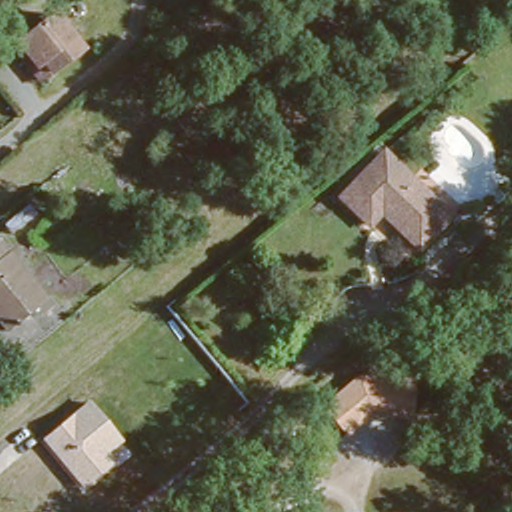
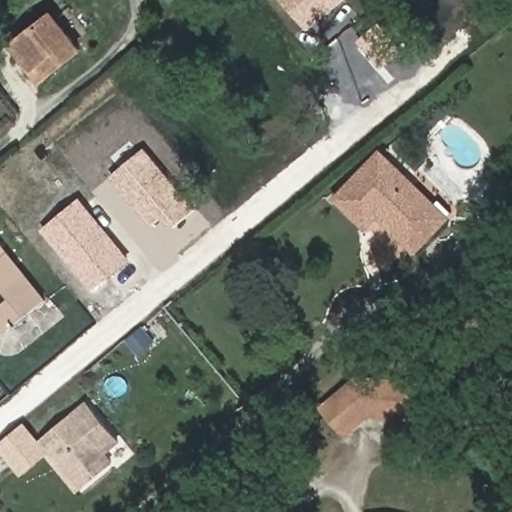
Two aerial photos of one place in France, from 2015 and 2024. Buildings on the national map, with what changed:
new [(284,0),(345,0),(308,31),(284,0)]
unchanged [(12,36),(47,6),(77,41),(37,75),(25,61),(7,40),(12,36)]
new [(399,51),(377,69),(357,41),(381,25),(399,51)]
unchanged [(437,228),(415,251),(382,220),(387,213),(382,208),(365,226),(333,195),(380,149),(438,205),(449,215),(437,228)]
new [(143,150),(195,211),(171,232),(162,220),(151,229),(108,178),(143,150)]
new [(127,260),(89,291),(41,230),(78,199),(127,260)]
unchanged [(0,312),(0,237),(35,282),(47,298),(12,327),(0,312)]
unchanged [(407,418),(366,416),(341,438),(316,406),(350,374),(411,378),(407,418)]
unchanged [(110,453),(117,463),(84,492),(40,439),(89,399),(124,443),(110,453)]
new [(36,442),(40,439),(50,451),(17,478),(0,456),(0,442),(21,424),(36,442)]

